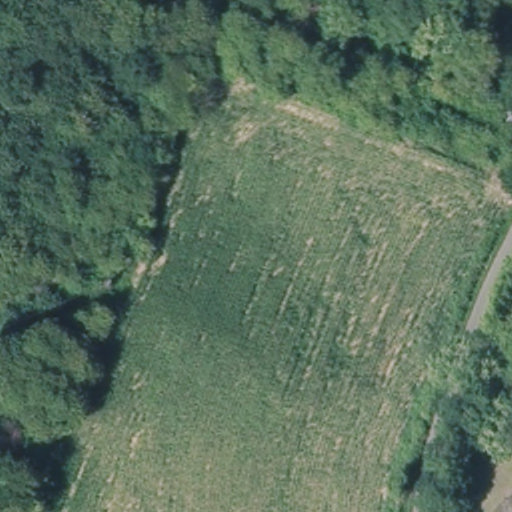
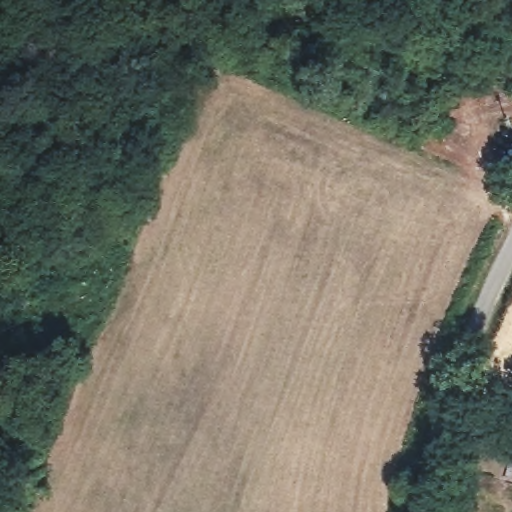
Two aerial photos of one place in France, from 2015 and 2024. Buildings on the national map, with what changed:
[]

